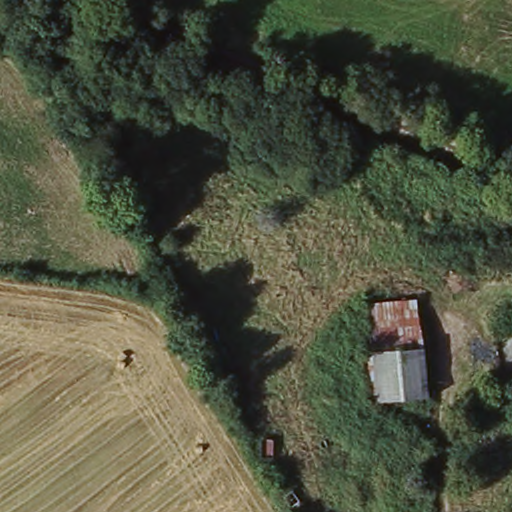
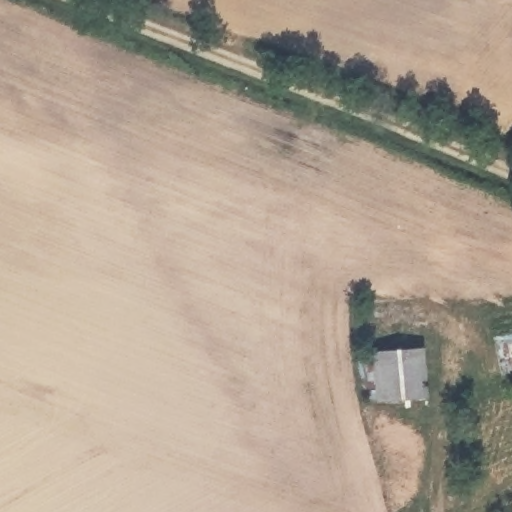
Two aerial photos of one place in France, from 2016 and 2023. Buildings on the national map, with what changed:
unchanged [(429,401),(375,403),(367,308),(414,303),(429,401)]

